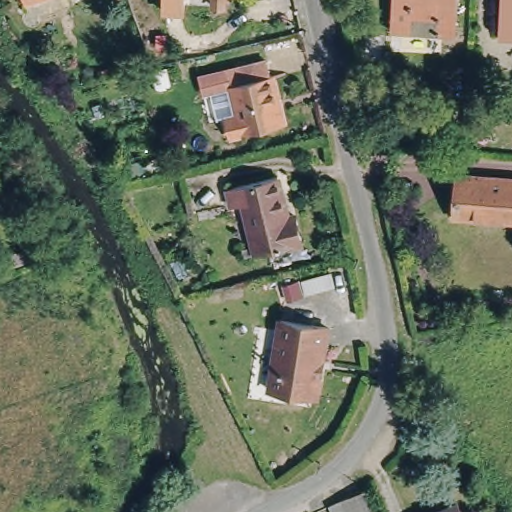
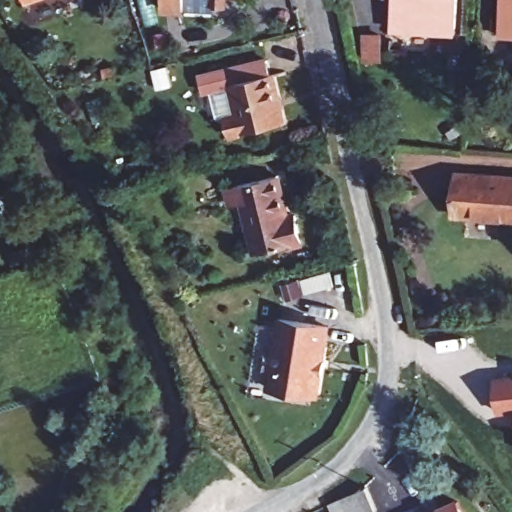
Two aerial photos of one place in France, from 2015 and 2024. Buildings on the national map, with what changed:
unchanged [(18,0),(30,0),(19,4),(18,0)]
unchanged [(392,0),(454,0),(452,32),(408,30),(390,28),(392,0)]
unchanged [(501,0),(512,0),(512,36),(498,35),(501,0)]
unchanged [(229,133),(225,117),(237,115),(231,81),(204,87),(201,71),(269,57),(272,72),(275,72),(285,122),(229,133)]
unchanged [(457,215),(462,174),(512,180),(512,222),(457,215)]
unchanged [(249,255),(240,203),(228,206),(225,187),(273,177),(282,220),(290,218),(295,246),(249,255)]
unchanged [(7,250),(23,246),(20,236),(37,232),(43,256),(10,265),(7,250)]
unchanged [(265,386),(276,317),(322,323),(311,393),(265,386)]
new [(499,412),(495,380),(512,378),(512,410),(499,412)]
unchanged [(342,500),(357,493),(366,490),(374,507),(371,508),(372,512),(347,512),(342,500)]
unchanged [(452,497),(459,512),(419,512),(452,497)]

